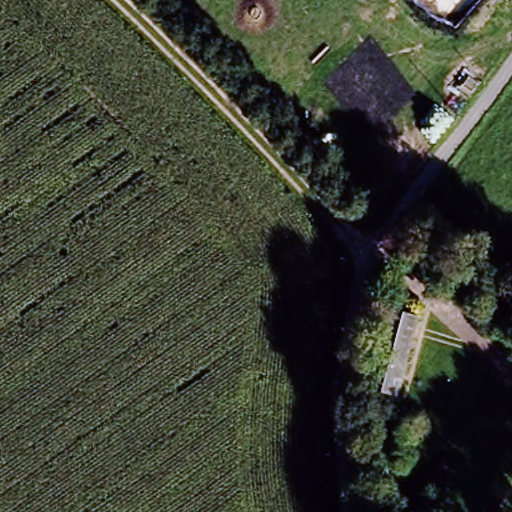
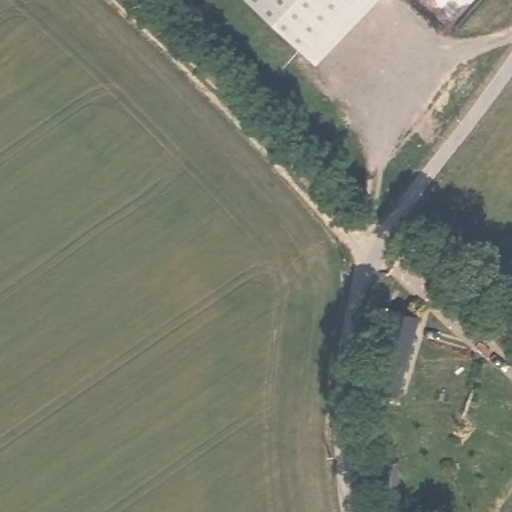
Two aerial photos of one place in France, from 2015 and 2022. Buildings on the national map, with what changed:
new [(247,0),(376,0),(315,66),(247,0)]
unchanged [(362,387),(368,360),(385,295),(408,300),(389,392),(362,387)]
unchanged [(359,457),(379,457),(379,486),(359,486),(359,457)]

